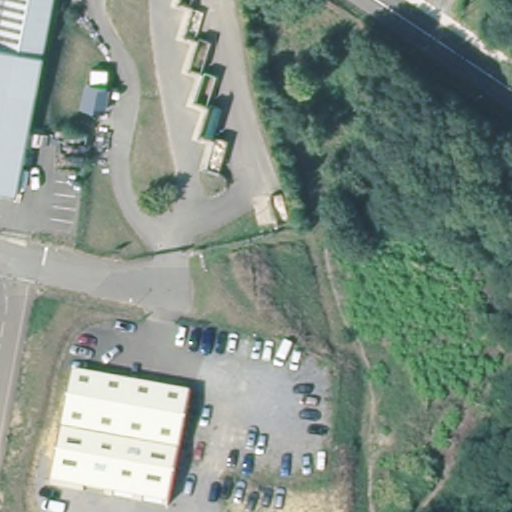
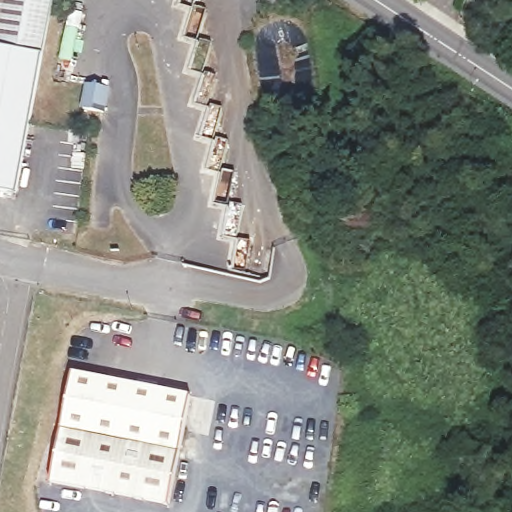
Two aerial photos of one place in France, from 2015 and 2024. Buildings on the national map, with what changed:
unchanged [(34,103),(17,191),(0,188),(0,0),(54,0),(36,91),(34,103)]
unchanged [(79,103),(83,82),(108,87),(106,109),(79,103)]
unchanged [(60,427),(72,372),(192,394),(182,449),(60,427)]
unchanged [(167,505),(49,482),(60,427),(182,449),(167,505)]

